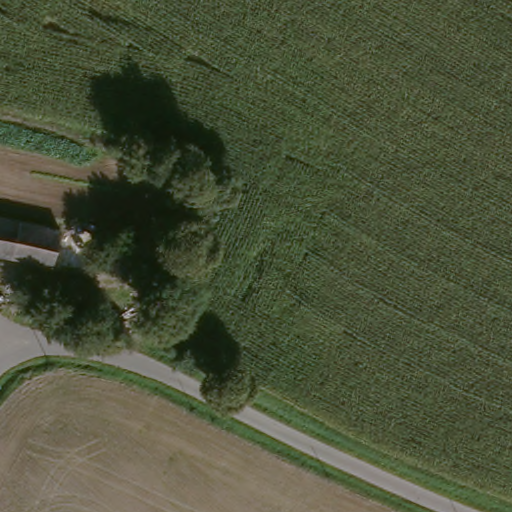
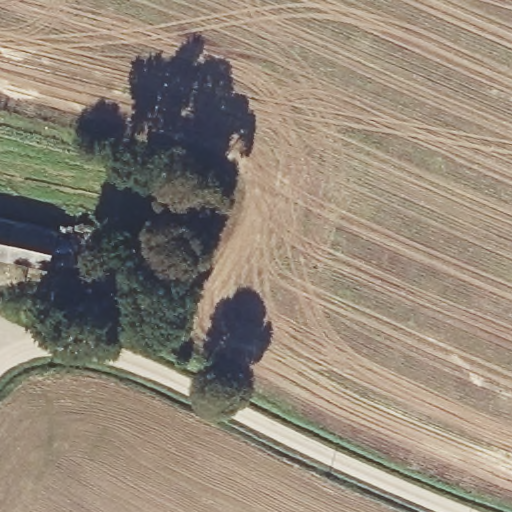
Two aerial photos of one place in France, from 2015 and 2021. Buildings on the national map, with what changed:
unchanged [(0,225),(13,227),(3,262),(0,262),(0,225)]
unchanged [(13,227),(52,235),(43,270),(3,262),(13,227)]

